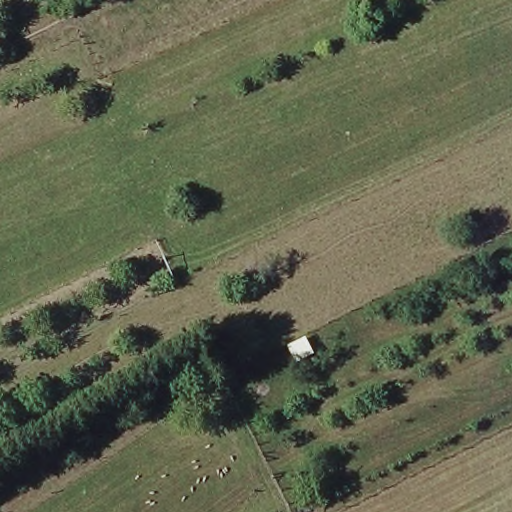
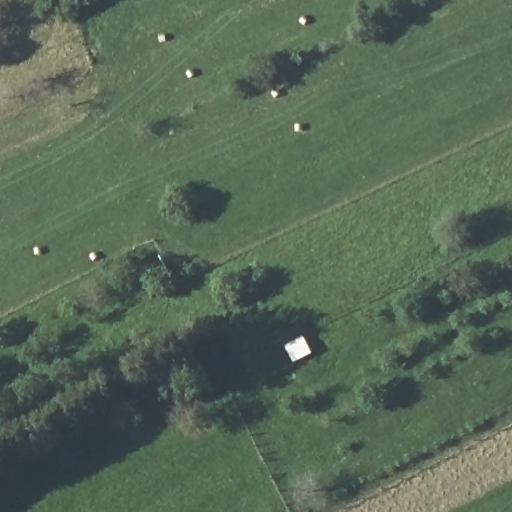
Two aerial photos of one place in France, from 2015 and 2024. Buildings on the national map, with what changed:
unchanged [(295,368),(286,349),(309,337),(317,355),(295,368)]

